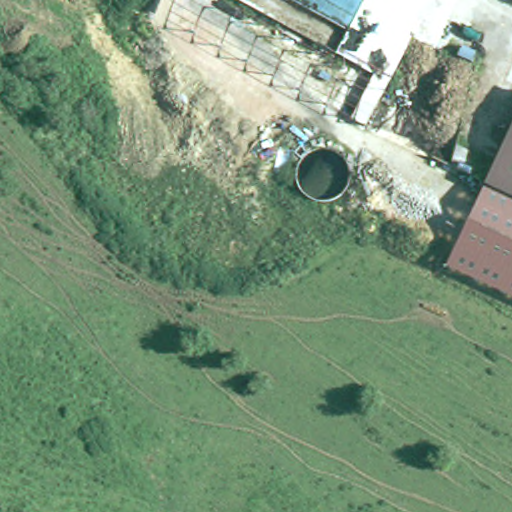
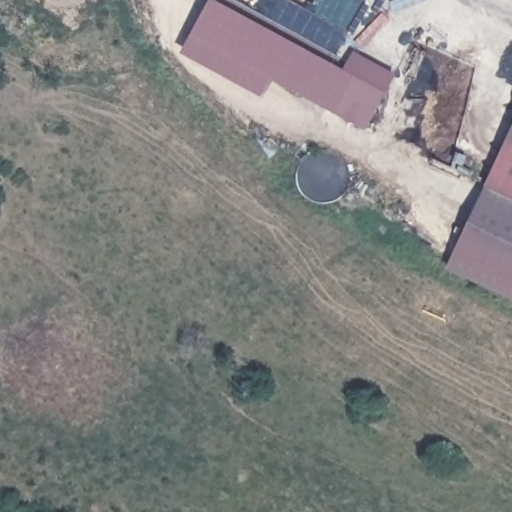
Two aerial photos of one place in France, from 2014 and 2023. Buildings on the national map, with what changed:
new [(220,0),(343,66),(352,49),(395,71),(367,127),(273,78),(264,95),(181,50),(207,0),(220,0)]
unchanged [(512,129),(512,200),(483,186),(512,129)]
unchanged [(483,186),(512,200),(512,300),(445,269),(483,186)]

